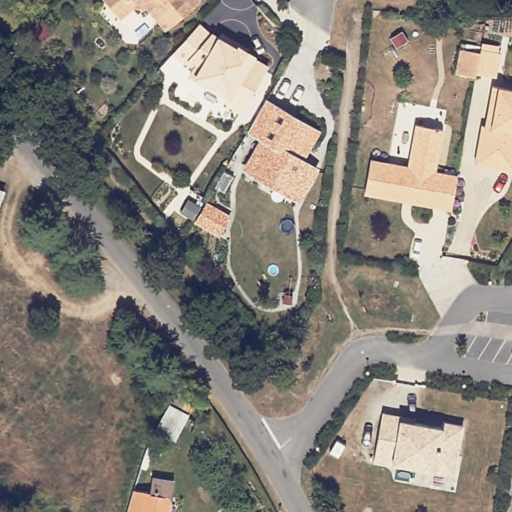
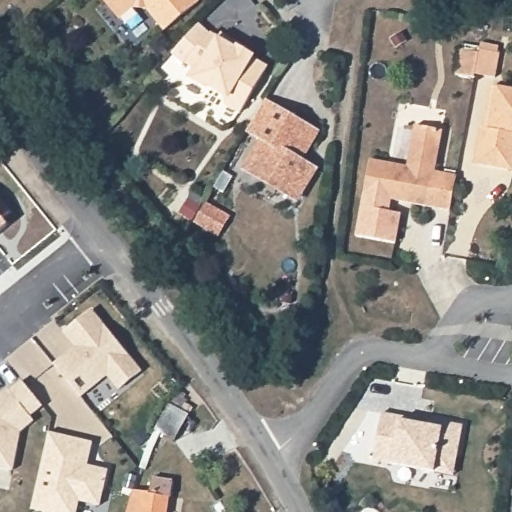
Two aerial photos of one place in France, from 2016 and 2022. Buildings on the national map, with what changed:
unchanged [(199,1),(165,30),(147,8),(133,7),(120,18),(105,0),(199,0),(199,1)]
unchanged [(257,53),(272,62),(247,104),(232,95),(230,85),(215,76),(214,78),(196,67),(203,55),(193,53),(215,28),(223,33),(225,30),(226,28),(251,43),(250,45),(259,50),(257,53)]
unchanged [(475,78),(456,74),(461,50),(480,54),(476,78),(475,78)]
unchanged [(508,170),(475,164),(482,125),(485,126),(489,105),(493,86),(512,90),(512,171),(508,170)]
unchanged [(297,197),(264,178),(245,167),(263,137),(248,128),(266,98),(318,129),(300,159),(311,166),(315,168),(297,197)]
unchanged [(364,192),(370,159),(407,165),(415,124),(443,129),(435,171),(457,175),(451,209),(412,202),(404,200),(364,192)]
demolished [(0,197),(0,191),(2,191),(0,197)]
new [(2,218),(7,224),(0,230),(0,200),(9,211),(2,218)]
unchanged [(194,202),(205,210),(197,222),(186,214),(194,202)]
unchanged [(233,219),(223,236),(201,224),(211,207),(233,219)]
new [(75,346),(63,332),(91,310),(141,371),(119,389),(107,375),(79,397),(53,364),(75,346)]
new [(34,420),(20,431),(13,470),(0,467),(0,395),(8,389),(9,391),(21,381),(42,406),(30,416),(34,420)]
unchanged [(434,469),(373,457),(382,410),(401,414),(415,417),(414,421),(441,426),(442,420),(462,424),(456,456),(453,473),(434,469)]
new [(92,442),(87,465),(108,470),(100,505),(74,499),(71,512),(45,512),(29,508),(47,432),(92,442)]
unchanged [(145,487),(148,488),(151,473),(171,476),(169,491),(167,491),(164,512),(127,512),(131,486),(145,487)]

